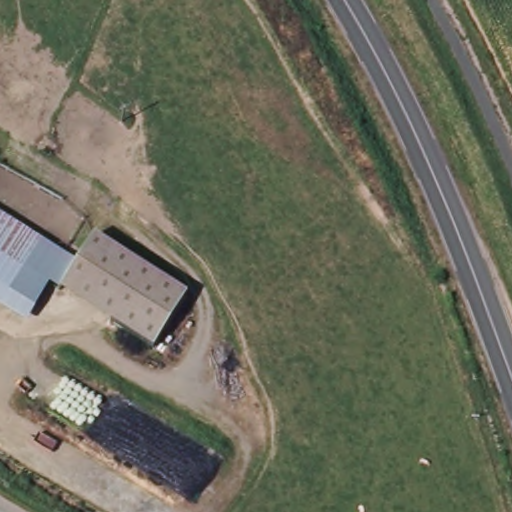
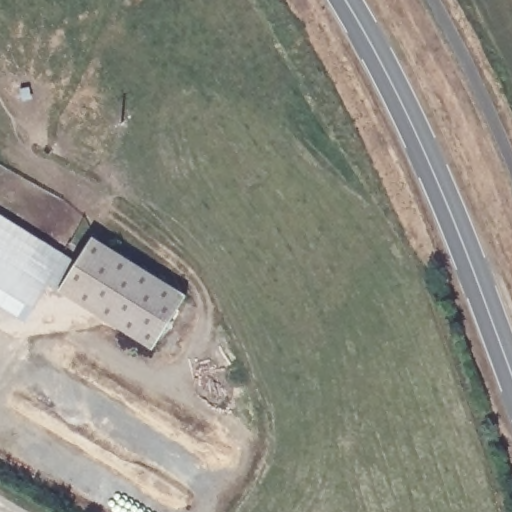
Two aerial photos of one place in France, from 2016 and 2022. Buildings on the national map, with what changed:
unchanged [(41,242),(0,308),(0,216),(41,242)]
unchanged [(41,242),(75,262),(91,237),(184,295),(150,350),(61,292),(46,285),(26,322),(0,309),(0,308),(41,242)]

